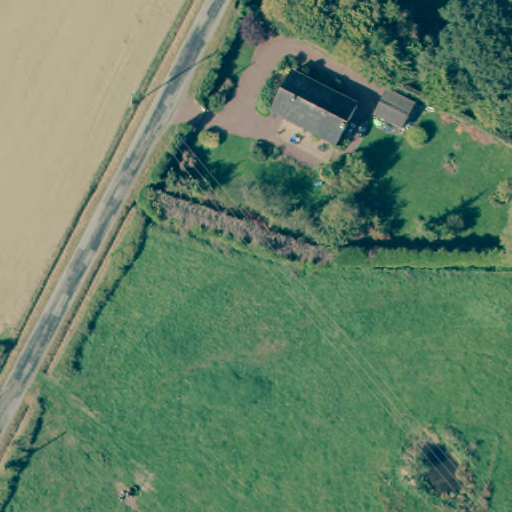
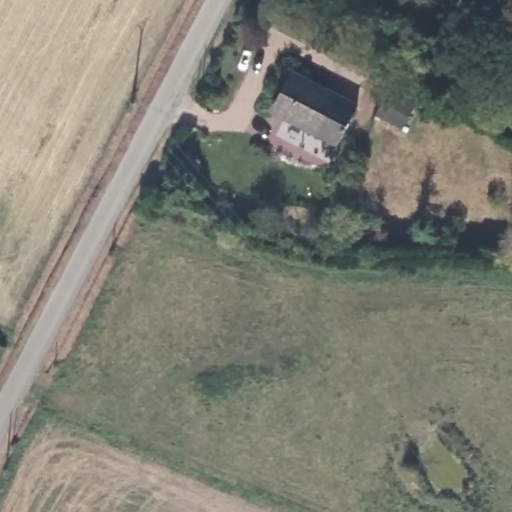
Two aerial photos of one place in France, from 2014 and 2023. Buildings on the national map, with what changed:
unchanged [(361,102),(340,142),(274,107),(294,67),(361,102)]
unchanged [(389,123),(403,96),(431,111),(416,138),(393,126),(389,123)]

